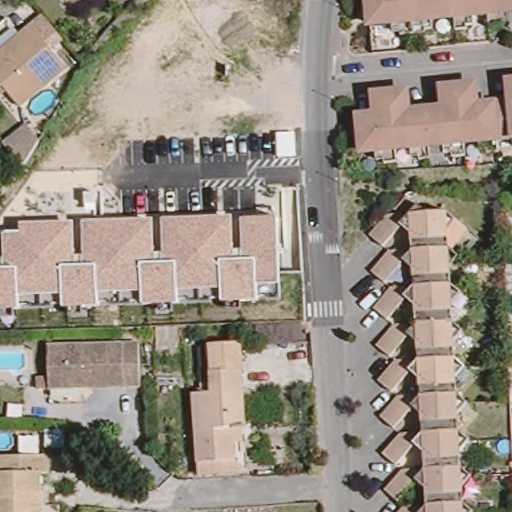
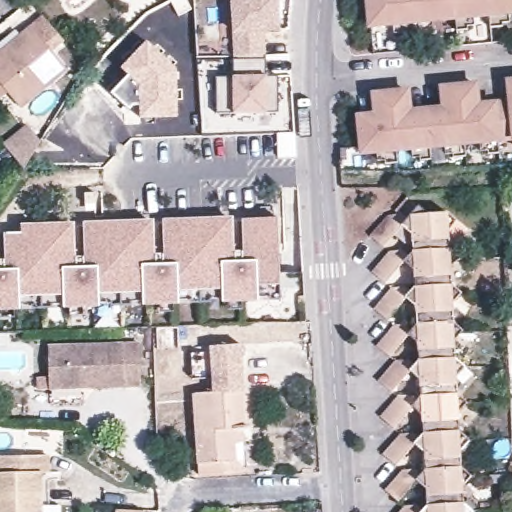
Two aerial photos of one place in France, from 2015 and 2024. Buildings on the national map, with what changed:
unchanged [(64,2),(62,0),(66,0),(64,2)]
new [(278,30),(262,31),(267,74),(279,75),(280,114),(218,117),(216,78),(235,76),(233,0),(274,0),(278,30)]
unchanged [(492,8),(473,10),(473,25),(451,27),(450,12),(436,13),(437,29),(396,31),(394,17),(369,19),(367,0),(512,0),(512,20),(493,23),(492,8)]
unchanged [(0,92),(0,56),(7,51),(24,37),(36,27),(46,19),(49,16),(69,39),(55,50),(71,68),(26,107),(12,92),(6,99),(0,92)]
new [(126,75),(119,68),(146,40),(176,68),(178,117),(138,119),(137,114),(132,112),(122,106),(108,93),(126,75)]
unchanged [(510,133),(495,134),(497,149),(476,150),(475,136),(461,137),(462,152),(442,152),(441,139),(428,140),(428,154),(409,155),(407,142),(393,143),(394,157),(377,158),(374,144),(359,146),(355,111),(372,109),(371,89),(403,86),(405,106),(440,103),(438,83),(473,80),(475,101),(510,98),(509,77),(512,77),(512,146),(512,147),(510,133)]
unchanged [(27,124),(40,140),(16,160),(3,144),(27,124)]
unchanged [(441,216),(452,226),(443,237),(444,252),(455,262),(445,272),(447,288),(458,297),(448,310),(449,324),(460,334),(450,344),(451,360),(462,370),(452,380),(455,395),(465,405),(456,417),(456,431),(467,441),(458,453),(459,467),(469,477),(460,490),(462,504),(470,512),(401,512),(406,507),(424,506),(423,491),(414,483),(397,501),(385,490),(400,472),(422,470),(421,456),(411,450),(395,466),(382,455),(399,435),(418,434),(418,419),(410,412),(392,430),(380,419),(396,399),(416,398),(415,384),(406,377),(389,394),(376,383),(393,364),(414,362),(413,349),(404,340),(387,358),(375,347),(394,327),(411,327),(411,313),(400,304),(384,322),(372,311),(388,292),(409,291),(408,275),(399,268),(382,286),(370,275),(386,256),(407,254),(405,240),(396,231),(378,249),(367,240),(384,219),(404,218),(412,209),(422,217),(441,216)]
unchanged [(76,222),(77,257),(84,257),(83,222),(155,220),(156,254),(164,253),(163,220),(234,217),(235,252),(242,251),(241,219),(279,217),(281,301),(242,303),(242,310),(227,310),(227,303),(175,305),(174,311),(160,312),(160,306),(84,308),(83,317),(68,318),(68,309),(16,311),(16,320),(2,320),(1,312),(0,312),(0,259),(5,259),(5,233),(22,232),(22,223),(76,222)]
unchanged [(238,442),(239,461),(203,463),(197,392),(219,392),(216,346),(246,345),(251,432),(248,432),(249,442),(238,442)]
unchanged [(46,392),(45,351),(135,347),(137,389),(94,391),(80,391),(46,392)]
unchanged [(0,512),(0,457),(47,455),(48,475),(39,475),(41,505),(61,505),(61,512),(0,512)]

